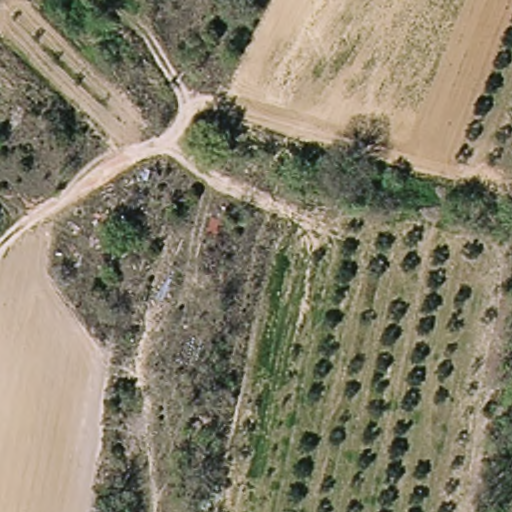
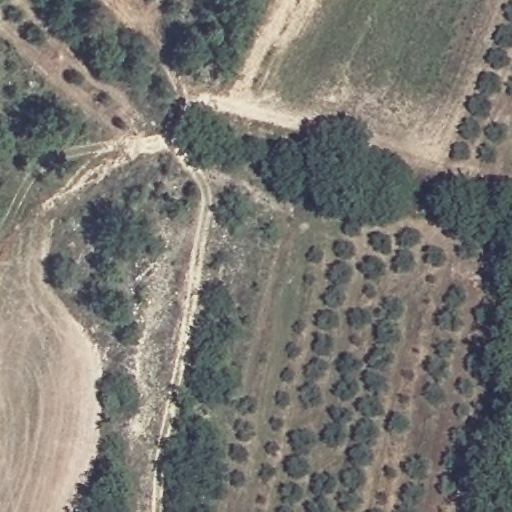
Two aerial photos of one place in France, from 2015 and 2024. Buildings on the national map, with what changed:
[]

